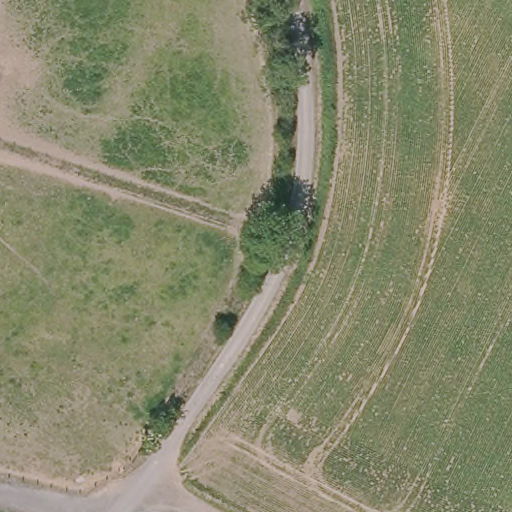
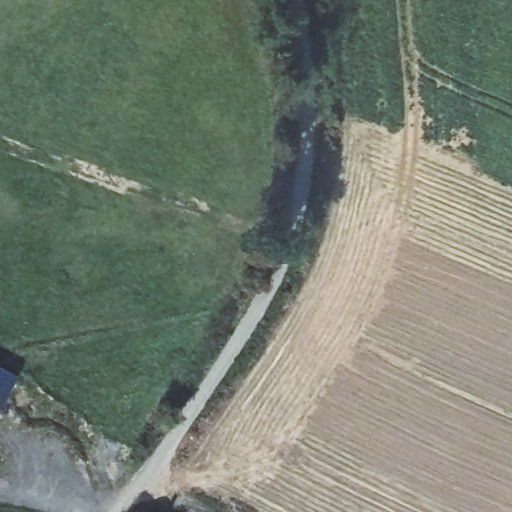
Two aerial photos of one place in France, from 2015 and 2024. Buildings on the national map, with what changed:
new [(15,382),(0,409),(0,373),(15,382)]

